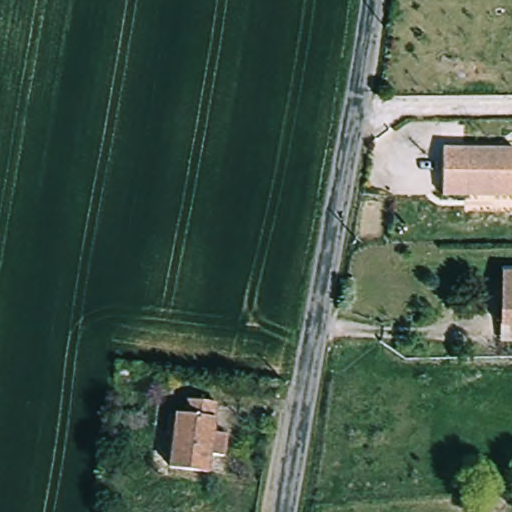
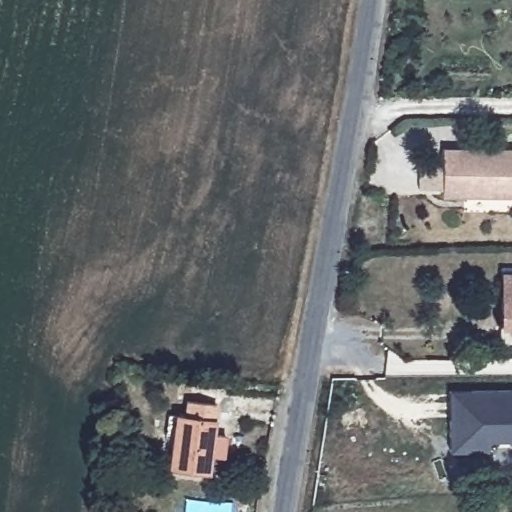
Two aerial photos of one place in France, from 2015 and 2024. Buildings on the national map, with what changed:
unchanged [(511,148),(510,197),(437,195),(438,147),(511,148)]
unchanged [(500,343),(501,326),(502,274),(512,274),(512,343),(500,343)]
new [(449,390),(512,389),(512,442),(487,442),(487,453),(449,454),(449,390)]
unchanged [(211,434),(225,436),(222,458),(208,456),(206,474),(168,469),(175,416),(185,417),(186,401),(216,404),(211,434)]

